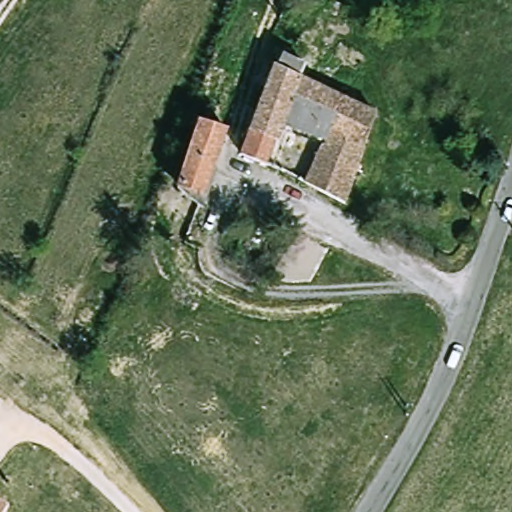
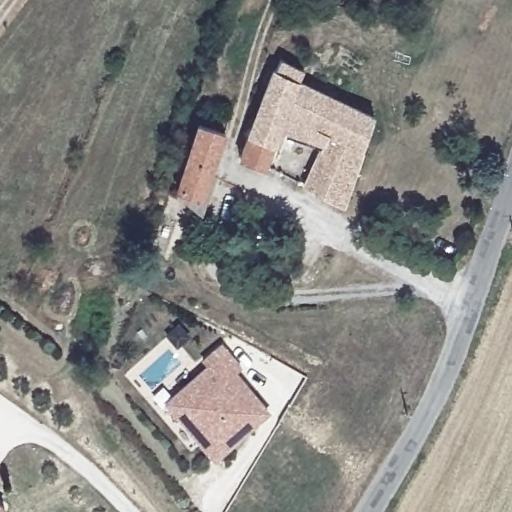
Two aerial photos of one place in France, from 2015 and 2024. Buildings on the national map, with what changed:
unchanged [(272,164),(245,155),(272,78),(277,65),(292,71),(288,82),(299,85),(289,109),(272,164)]
unchanged [(298,108),(277,165),(272,164),(289,109),(299,85),(380,110),(352,193),(313,180),(333,120),(298,108)]
unchanged [(227,131),(202,199),(182,193),(175,191),(200,122),(206,125),(227,131)]
new [(163,402),(205,365),(201,360),(222,343),(242,366),(236,372),(271,413),(215,460),(163,402)]
unchanged [(3,512),(0,512),(0,503),(7,507),(3,512)]

